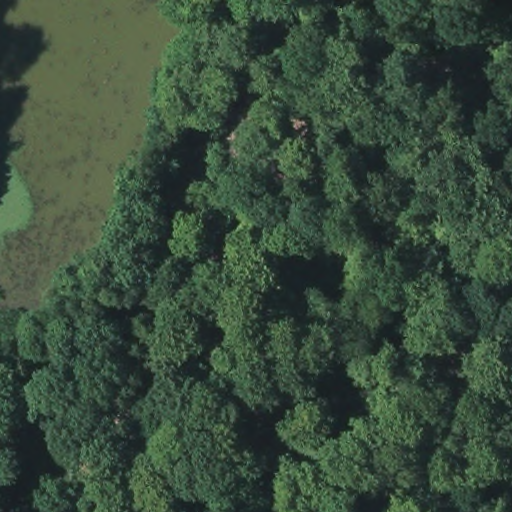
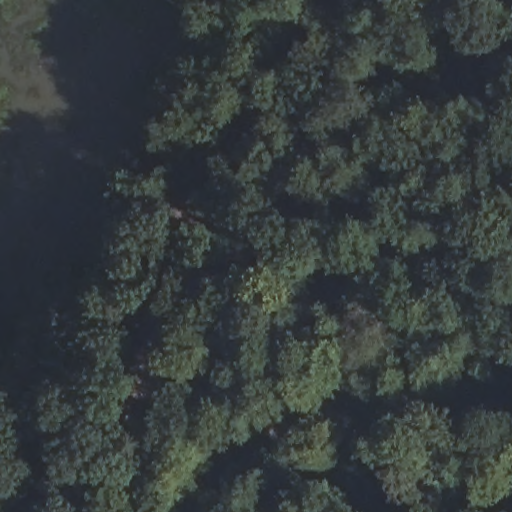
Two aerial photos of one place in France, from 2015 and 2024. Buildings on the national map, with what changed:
[]

